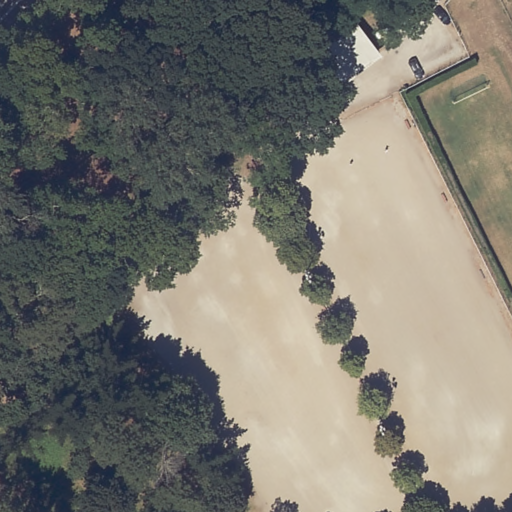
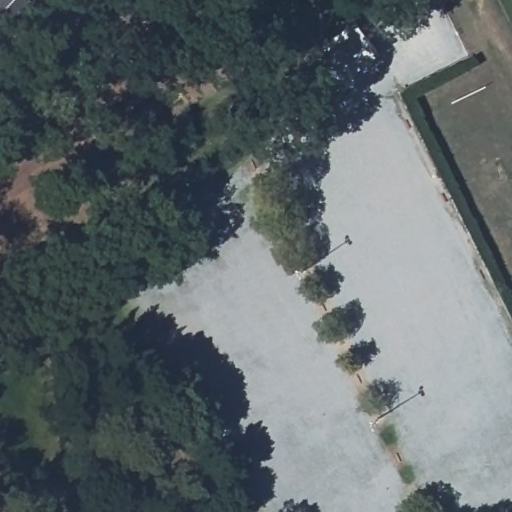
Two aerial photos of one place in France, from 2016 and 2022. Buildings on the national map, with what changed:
unchanged [(357,24),(377,51),(336,81),(316,54),(357,24)]

